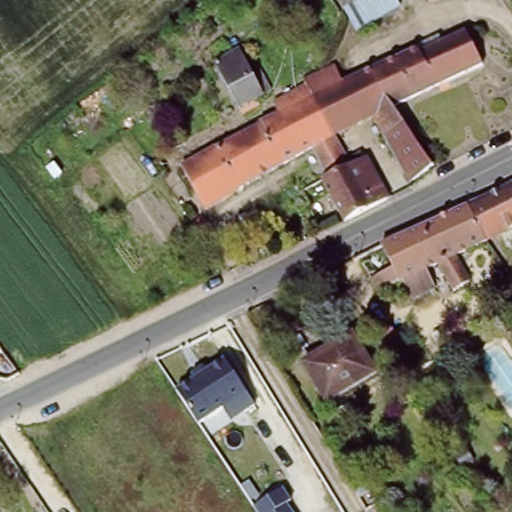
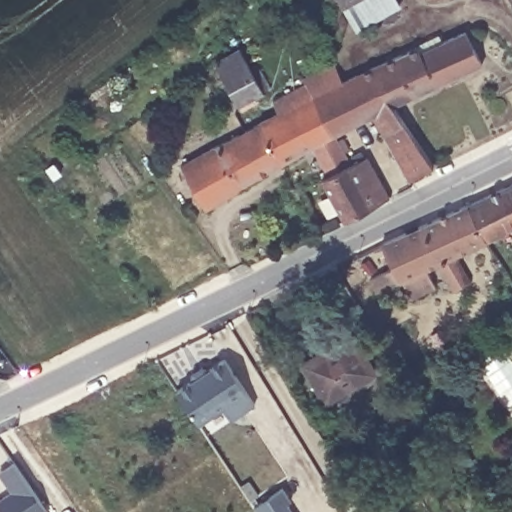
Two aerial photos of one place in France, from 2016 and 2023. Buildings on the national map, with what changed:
unchanged [(379,0),(344,23),(330,0),(379,0)]
unchanged [(353,36),(344,23),(379,0),(391,0),(397,9),(353,36)]
unchanged [(379,137),(367,117),(332,137),(301,85),(298,81),(316,72),(330,65),(339,79),(412,48),(414,52),(460,32),(478,67),(393,108),(401,123),(379,137)]
unchanged [(240,103),(229,85),(218,65),(241,49),(253,69),(265,89),(240,103)]
unchanged [(348,165),(324,179),(307,151),(261,178),(238,134),(275,112),(269,104),(301,85),(332,137),(348,165)]
unchanged [(405,181),(380,139),(379,137),(401,123),(428,167),(405,181)]
unchanged [(261,178),(200,213),(176,170),(238,134),(261,178)]
unchanged [(173,140),(177,146),(171,149),(168,143),(173,140)]
unchanged [(341,222),(318,183),(324,179),(348,165),(361,158),(384,199),(341,222)]
unchanged [(463,203),(512,180),(512,227),(483,241),(463,203)]
unchanged [(450,291),(437,263),(437,264),(424,269),(432,286),(408,298),(399,282),(372,294),(366,279),(391,267),(379,244),(463,203),(483,241),(454,255),(468,281),(450,291)]
unchanged [(381,377),(324,409),(299,366),(356,335),(381,377)]
unchanged [(222,358),(248,390),(256,399),(233,416),(224,404),(200,421),(175,387),(222,358)]
new [(0,510),(0,498),(11,490),(0,475),(0,471),(14,460),(48,512),(2,512),(0,510)]
unchanged [(284,486),(294,500),(289,504),(294,512),(258,512),(253,506),(284,486)]

